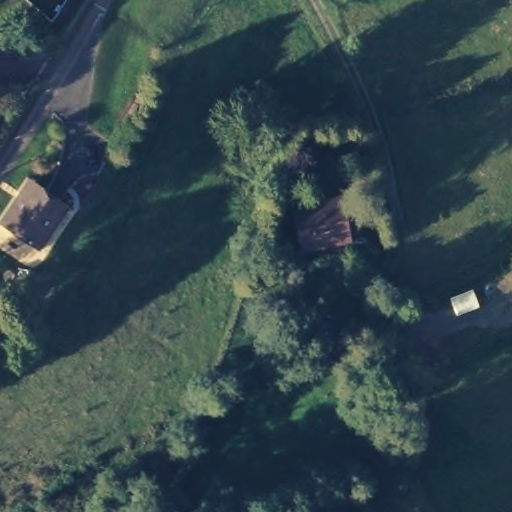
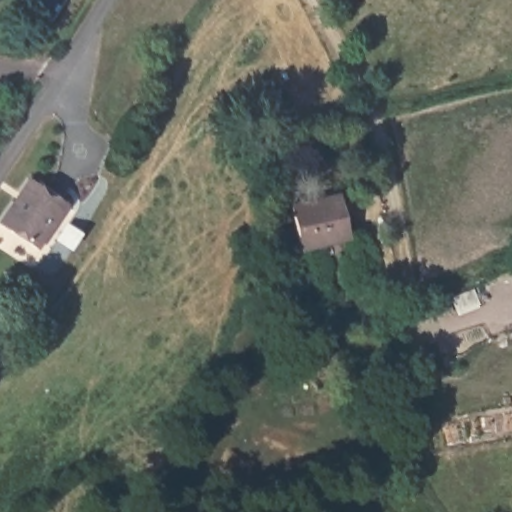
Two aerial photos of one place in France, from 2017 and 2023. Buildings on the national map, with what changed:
unchanged [(34,248),(0,227),(0,218),(26,181),(64,205),(34,248)]
unchanged [(333,194),(343,231),(301,241),(291,204),(333,194)]

